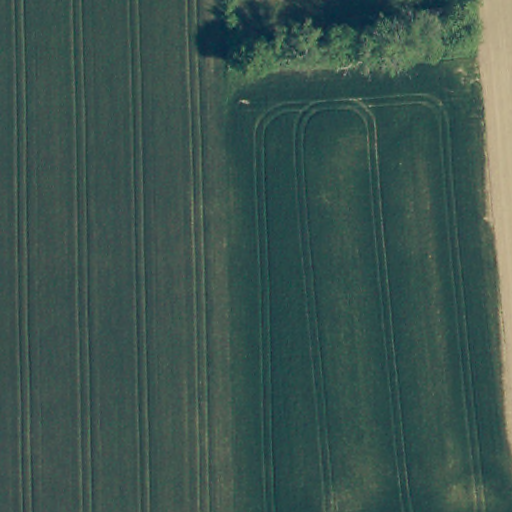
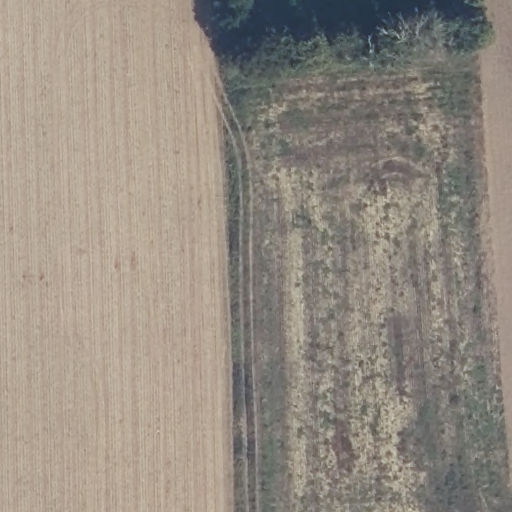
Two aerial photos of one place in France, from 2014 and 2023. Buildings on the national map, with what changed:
unchanged [(460,5),(462,29),(429,32),(427,7),(460,5)]

